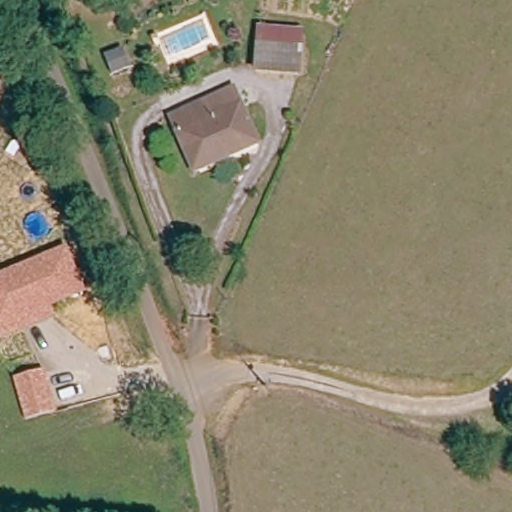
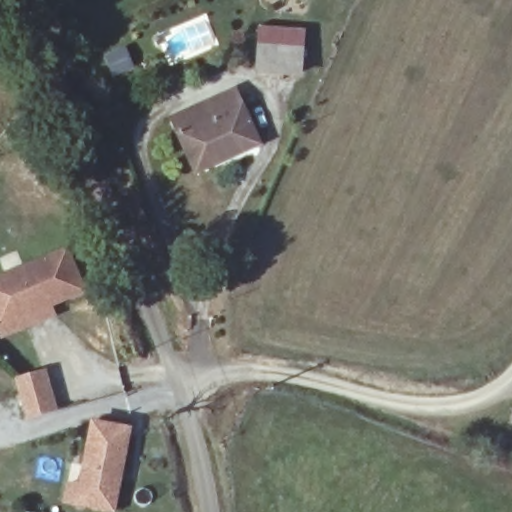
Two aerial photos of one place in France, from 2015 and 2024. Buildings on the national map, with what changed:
unchanged [(301,76),(254,73),(257,24),(304,27),(301,76)]
unchanged [(104,56),(122,48),(130,66),(111,73),(104,56)]
unchanged [(263,143),(193,175),(167,115),(234,87),(263,143)]
unchanged [(85,293),(52,305),(56,316),(0,338),(0,273),(67,245),(85,293)]
unchanged [(13,376),(45,368),(56,410),(25,418),(13,376)]
new [(131,424),(116,511),(61,503),(65,479),(78,482),(90,418),(131,424)]

